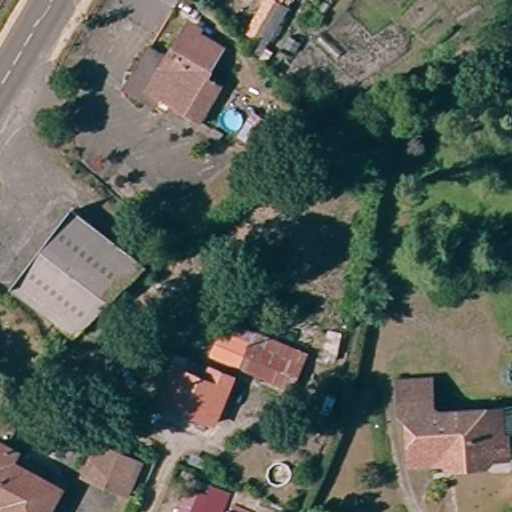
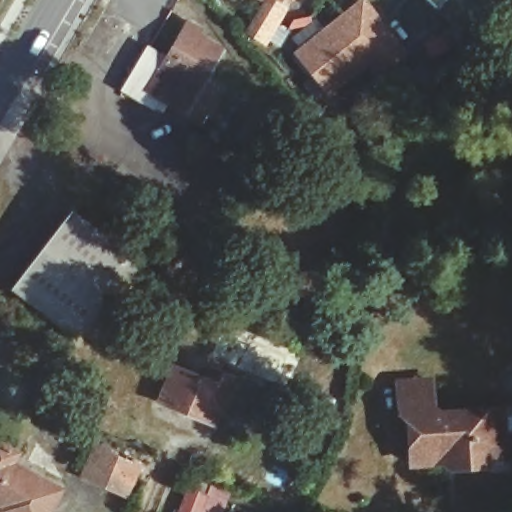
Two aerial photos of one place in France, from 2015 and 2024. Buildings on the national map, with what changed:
unchanged [(263,44),(245,34),(265,0),(283,11),(263,44)]
unchanged [(271,0),(279,0),(277,4),(271,0)]
new [(368,0),(410,52),(377,78),(367,66),(329,96),(292,51),(357,0),(368,0)]
unchanged [(210,79),(226,89),(222,96),(168,62),(188,29),(226,52),(210,79)]
unchanged [(146,104),(125,91),(150,51),(168,62),(222,96),(202,126),(161,101),(156,110),(146,104)]
unchanged [(256,142),(241,134),(254,110),(269,118),(256,142)]
unchanged [(77,339),(14,291),(74,212),(150,270),(77,339)]
unchanged [(294,390),(215,357),(229,323),(308,356),(294,390)]
unchanged [(336,357),(325,354),(331,329),(342,331),(336,357)]
unchanged [(216,426),(161,403),(175,368),(207,381),(212,370),(236,380),(216,426)]
unchanged [(449,471),(439,464),(433,464),(410,466),(405,422),(399,416),(398,404),(396,384),(428,381),(430,401),(431,410),(439,416),(502,410),(507,459),(493,460),(485,468),(449,471)]
unchanged [(1,509),(4,503),(0,501),(0,440),(19,450),(13,461),(61,487),(48,512),(8,512),(1,509)]
unchanged [(123,496),(81,477),(94,448),(136,467),(123,496)]
unchanged [(201,512),(180,512),(191,485),(209,493),(201,512)]

